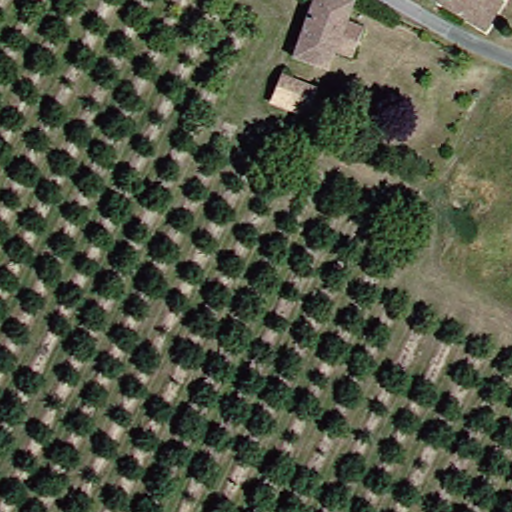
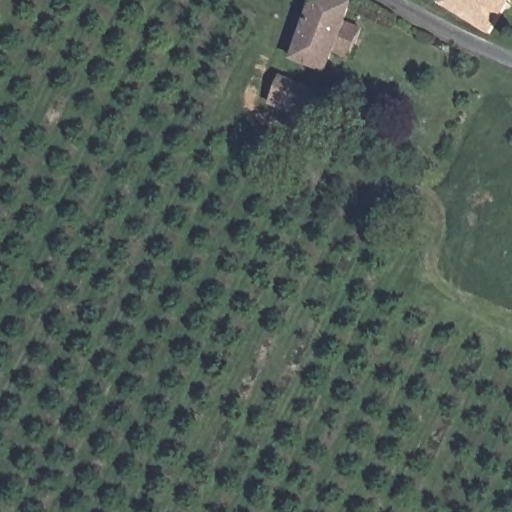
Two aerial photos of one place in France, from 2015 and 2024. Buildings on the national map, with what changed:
unchanged [(334,50),(324,68),(296,55),(317,0),(343,0),(352,5),(344,22),(363,30),(351,57),(334,50)]
unchanged [(438,2),(439,0),(507,0),(489,33),(438,2)]
unchanged [(318,89),(306,114),(276,99),(286,74),(318,89)]

